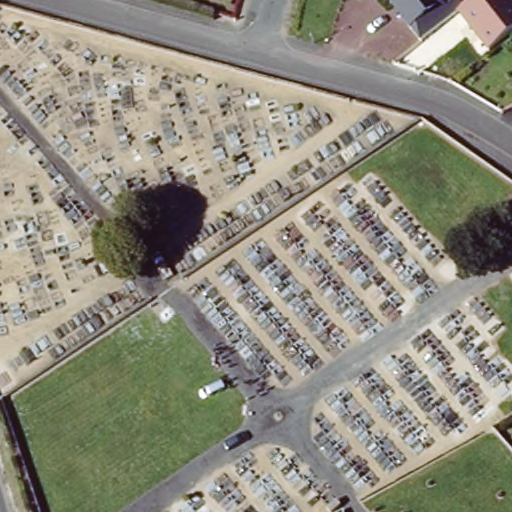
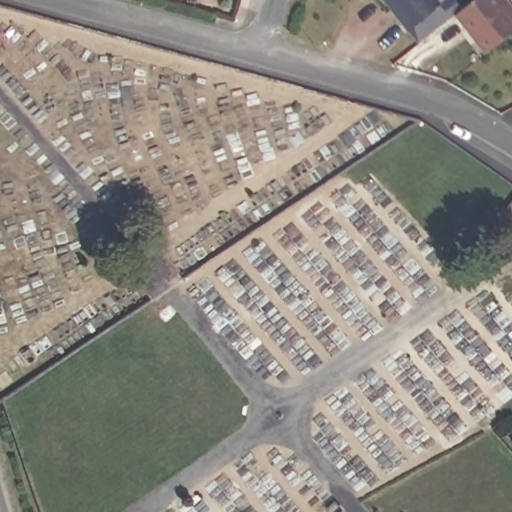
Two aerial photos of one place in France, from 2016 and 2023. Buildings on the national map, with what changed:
unchanged [(443,2),(445,0),(459,0),(464,6),(471,0),(511,0),(512,1),(512,33),(488,52),(457,12),(419,41),(387,0),(442,0),(443,2)]
unchanged [(5,390),(0,371),(13,368),(16,382),(14,383),(5,390)]
unchanged [(336,493),(344,486),(349,491),(341,499),(336,493)]

